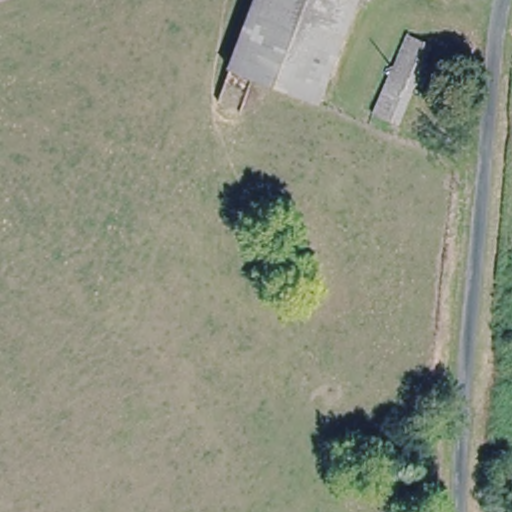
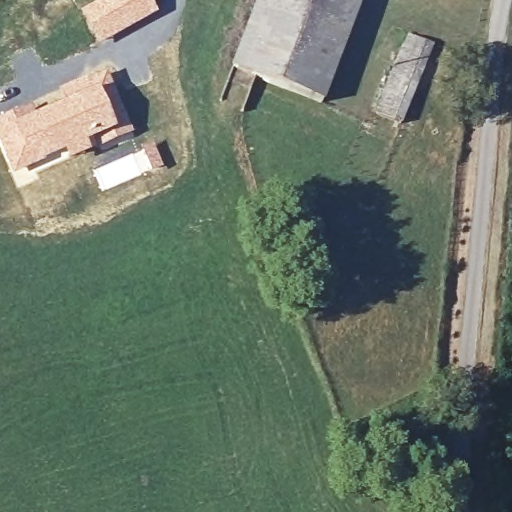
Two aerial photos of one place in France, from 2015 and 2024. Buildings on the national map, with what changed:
new [(103,0),(150,0),(157,12),(97,45),(79,14),(103,0)]
unchanged [(326,102),(235,67),(261,0),(364,0),(326,102)]
unchanged [(430,44),(403,120),(377,110),(407,35),(430,44)]
new [(35,115),(63,103),(59,92),(107,74),(132,132),(67,160),(63,152),(11,173),(0,145),(0,119),(31,106),(35,115)]

